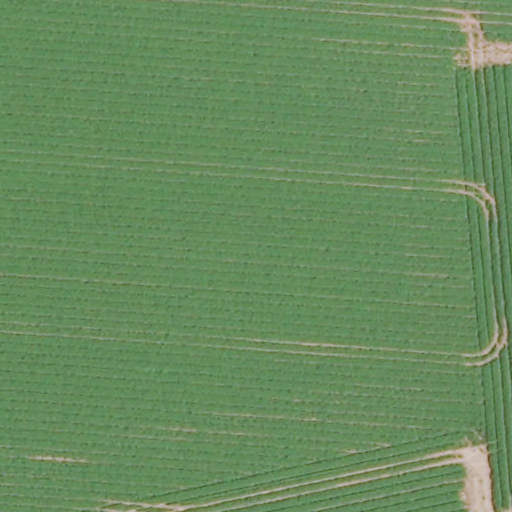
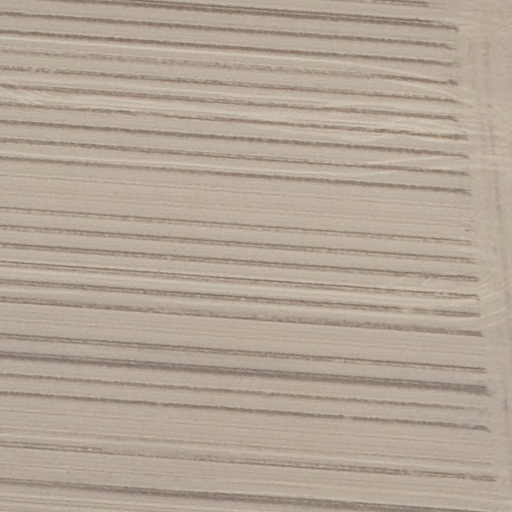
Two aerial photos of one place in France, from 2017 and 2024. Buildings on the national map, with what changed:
[]

